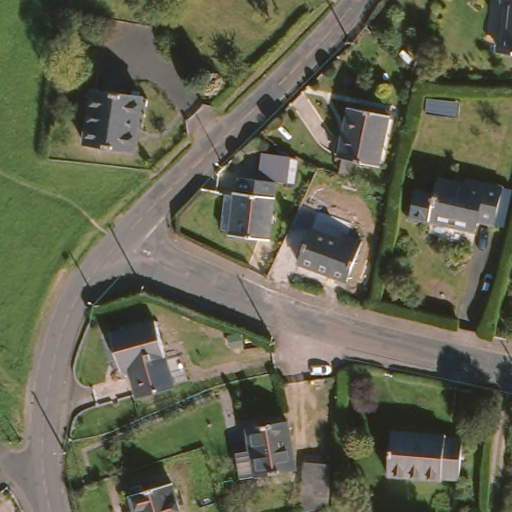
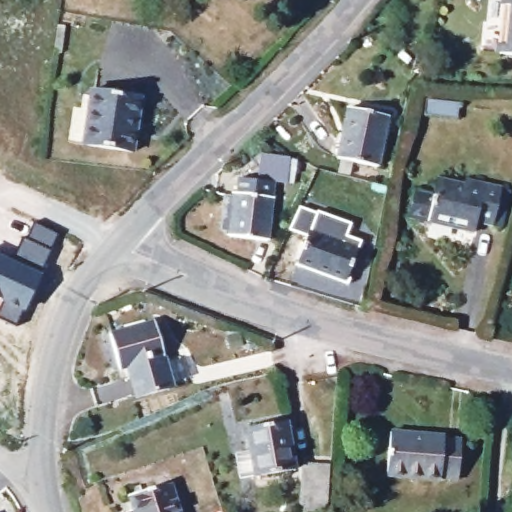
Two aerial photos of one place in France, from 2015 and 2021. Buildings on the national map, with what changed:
unchanged [(504,55),(510,0),(512,0),(512,56),(504,55)]
unchanged [(141,97),(131,150),(81,142),(90,89),(141,97)]
unchanged [(430,98),(427,112),(407,108),(409,94),(430,98)]
unchanged [(389,119),(378,168),(338,158),(350,109),(389,119)]
unchanged [(229,205),(243,206),(244,189),(263,191),(267,164),(302,169),(298,196),(279,194),(273,250),(238,246),(238,243),(224,241),(229,205)]
unchanged [(503,178),(493,219),(476,214),(474,222),(429,210),(411,205),(418,181),(436,186),(440,169),(467,176),(469,167),(503,178)]
new [(25,237),(29,239),(36,228),(61,241),(55,252),(16,327),(0,318),(0,307),(4,300),(0,297),(0,255),(13,262),(25,237)]
unchanged [(333,241),(335,233),(354,239),(344,281),(292,265),(300,232),(333,241)]
unchanged [(512,236),(512,257),(501,255),(505,235),(512,236)]
unchanged [(157,321),(174,385),(134,393),(127,367),(116,370),(108,332),(157,321)]
unchanged [(239,447),(253,446),(249,422),(289,417),(295,465),(257,472),(243,473),(239,447)]
unchanged [(446,435),(464,436),(462,478),(407,475),(391,473),(393,429),(412,431),(447,432),(446,435)]
unchanged [(304,511),(304,470),(333,466),(332,507),(304,511)]
unchanged [(178,512),(132,512),(127,495),(170,482),(178,512)]

